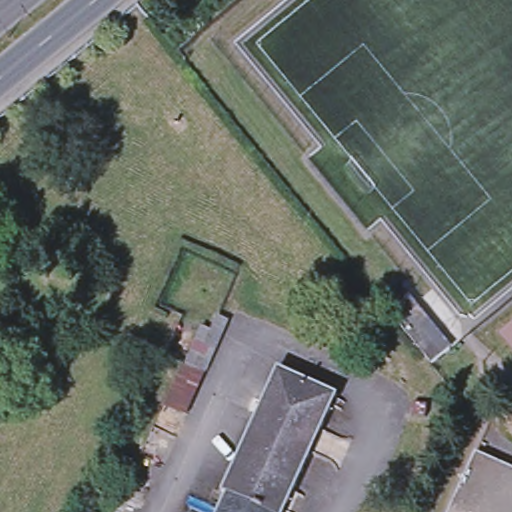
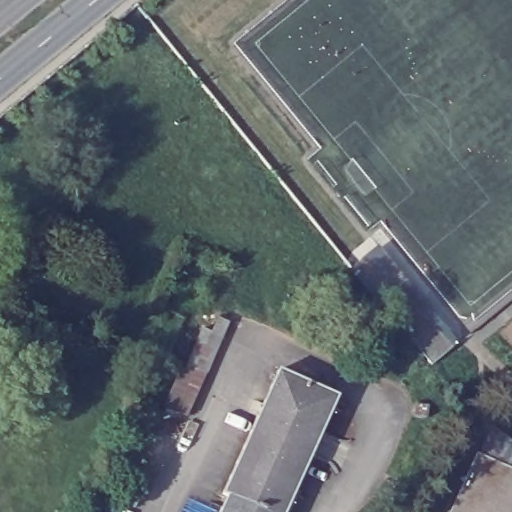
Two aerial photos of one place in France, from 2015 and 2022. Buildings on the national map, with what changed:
unchanged [(430,366),(400,328),(397,325),(380,303),(397,288),(415,310),(423,320),(449,351),(430,366)]
unchanged [(205,375),(185,366),(203,328),(212,332),(219,318),(229,323),(205,375)]
unchanged [(185,366),(205,375),(188,415),(164,404),(182,365),(185,366)]
unchanged [(285,512),(219,512),(225,498),(220,496),(276,371),(335,397),(285,512)]
unchanged [(451,512),(476,456),(512,472),(512,512),(451,512)]

